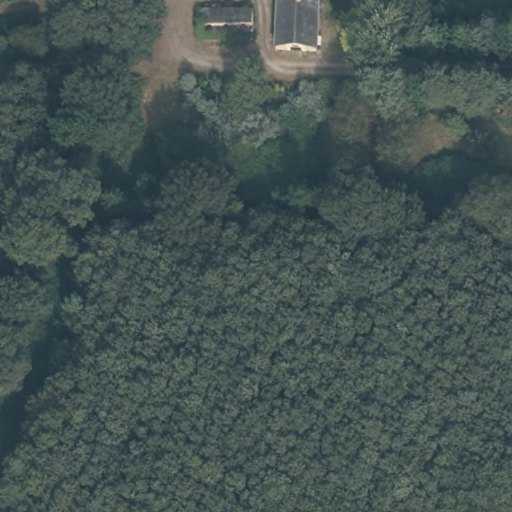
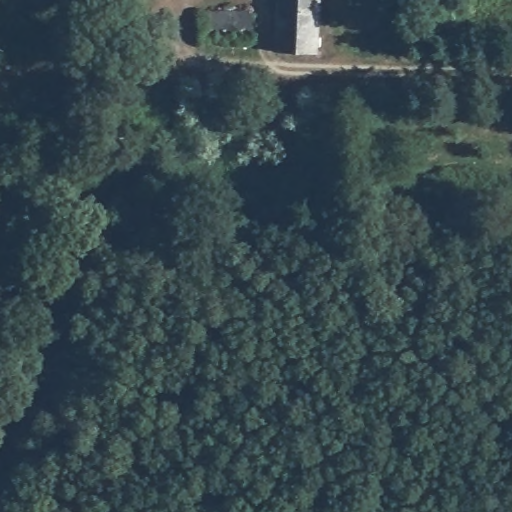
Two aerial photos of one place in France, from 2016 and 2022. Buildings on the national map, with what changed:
unchanged [(280,0),(321,0),(320,51),(278,50),(280,0)]
unchanged [(202,9),(252,10),(253,26),(201,25),(202,9)]

